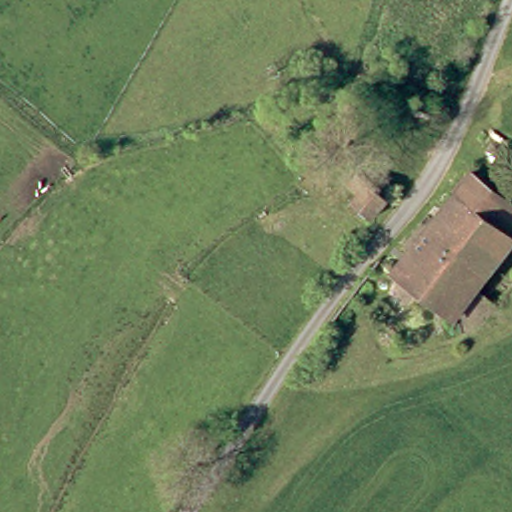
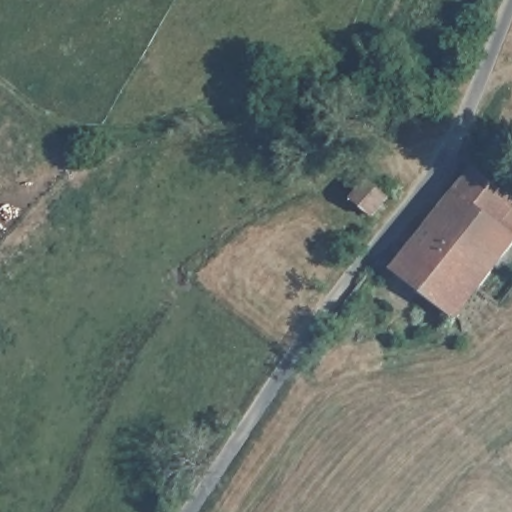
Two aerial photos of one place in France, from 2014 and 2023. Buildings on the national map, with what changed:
unchanged [(336,186),(342,178),(331,170),(321,161),(332,150),(370,182),(354,202),(336,186)]
unchanged [(454,190),(469,171),(512,206),(512,210),(497,226),(454,190)]
unchanged [(510,238),(449,311),(393,264),(454,190),(497,226),(510,238)]

